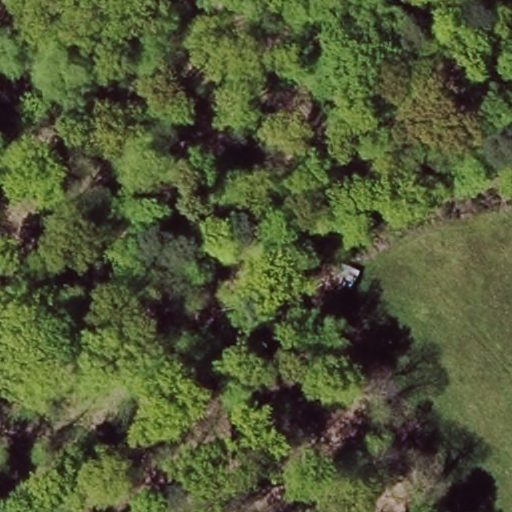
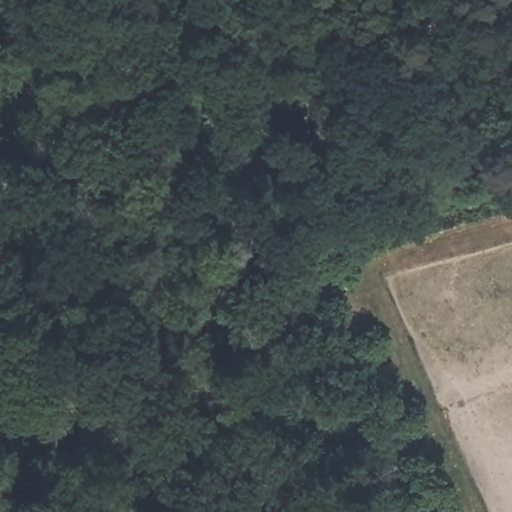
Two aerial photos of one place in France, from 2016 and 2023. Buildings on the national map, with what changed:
unchanged [(350,287),(331,278),(340,264),(356,271),(350,287)]

